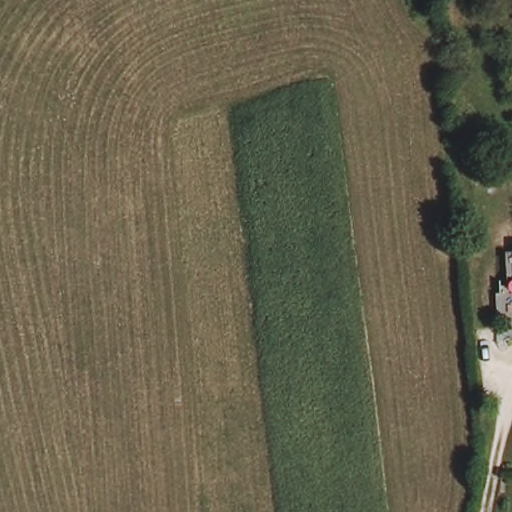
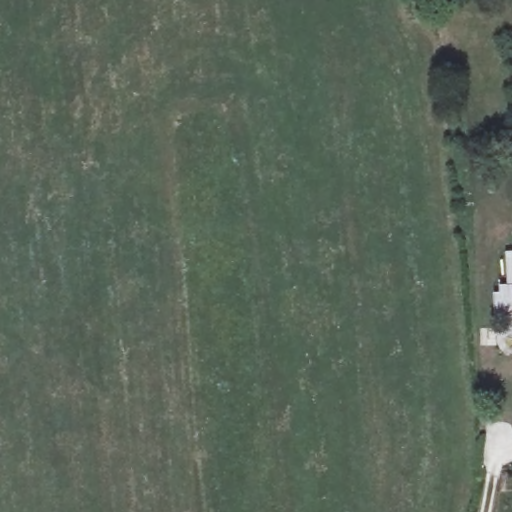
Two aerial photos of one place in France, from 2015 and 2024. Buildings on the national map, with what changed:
unchanged [(512,250),(512,267),(508,252),(512,250)]

